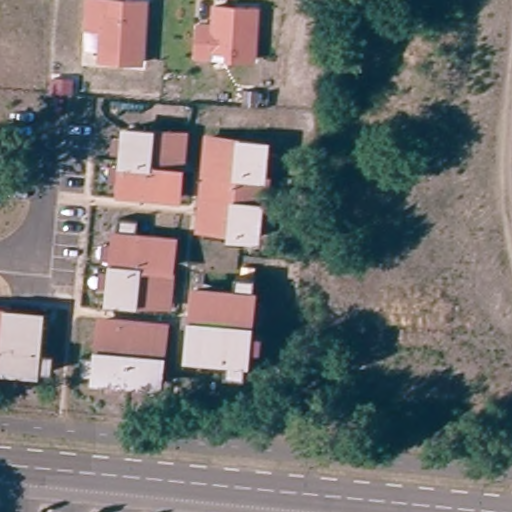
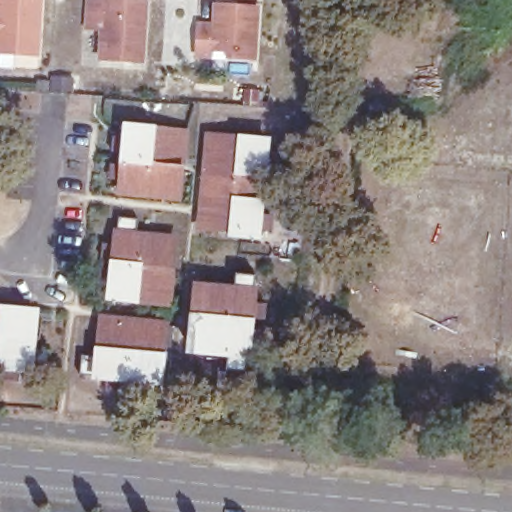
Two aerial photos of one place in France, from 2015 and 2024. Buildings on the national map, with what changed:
new [(41,57),(0,54),(0,0),(43,0),(41,57)]
unchanged [(126,1),(147,2),(143,63),(101,61),(103,31),(87,30),(89,0),(116,0),(126,1)]
unchanged [(197,54),(199,23),(216,24),(216,15),(217,7),(237,8),(258,10),(254,58),(228,56),(213,55),(197,54)]
unchanged [(114,152),(116,137),(128,139),(130,128),(186,134),(184,160),(158,157),(157,163),(126,160),(126,154),(114,152)]
unchanged [(230,161),(204,159),(207,133),(264,139),(261,171),(229,167),(230,161)]
unchanged [(156,170),(182,172),(180,197),(123,192),(124,181),(111,180),(113,165),(125,167),(126,160),(157,163),(156,170)]
unchanged [(203,171),(228,174),(229,167),(261,171),(257,202),(200,196),(203,171)]
unchanged [(268,228),(255,227),(254,234),(222,230),(223,223),(198,220),(200,196),(257,202),(256,212),(269,213),(268,228)]
unchanged [(109,244),(121,245),(125,218),(144,220),(143,237),(180,241),(177,266),(151,263),(151,270),(120,266),(120,260),(108,258),(109,244)]
unchanged [(150,276),(176,278),(173,304),(116,297),(117,287),(105,286),(106,271),(119,272),(120,266),(151,270),(150,276)]
unchanged [(259,322),(246,320),(246,327),(214,323),(215,317),(189,314),(192,288),(229,292),(231,276),(251,278),(248,305),(261,307),(259,322)]
unchanged [(5,377),(6,363),(0,363),(3,331),(9,332),(11,306),(37,308),(34,346),(50,347),(49,367),(21,365),(20,378),(5,377)]
unchanged [(111,386),(113,373),(86,371),(87,351),(104,352),(108,315),(133,317),(131,342),(136,343),(134,375),(128,375),(126,387),(111,386)]
unchanged [(139,389),(140,376),(134,375),(136,343),(143,344),(145,318),(171,321),(165,378),(155,377),(154,390),(139,389)]
unchanged [(245,332),(258,334),(257,349),(243,347),(241,375),(221,373),(223,356),(185,352),(188,327),(213,330),(214,323),(246,327),(245,332)]
unchanged [(0,363),(0,331),(3,331),(0,363)]

